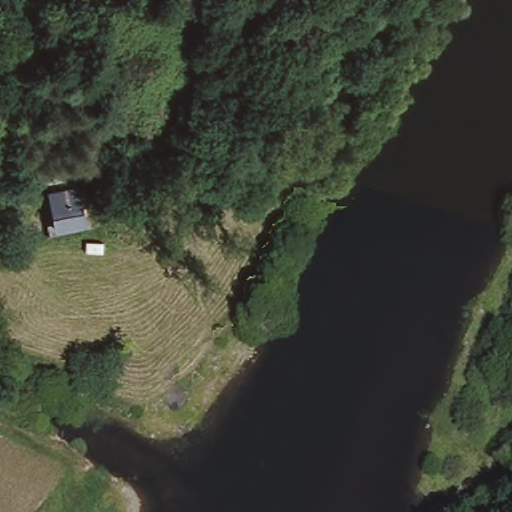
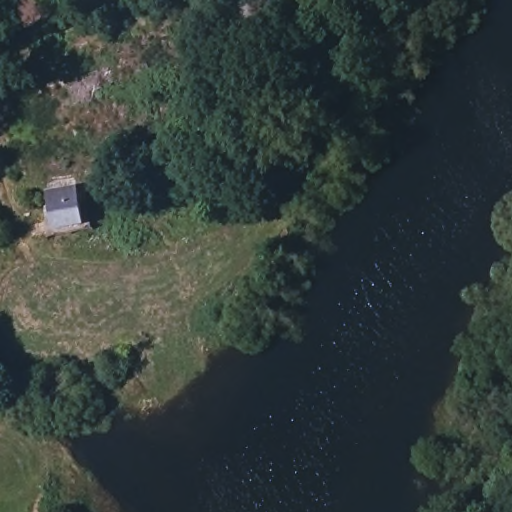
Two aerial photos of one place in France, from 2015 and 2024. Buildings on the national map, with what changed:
unchanged [(60,208),(59,204),(57,195),(85,187),(89,200),(95,222),(66,229),(62,216),(60,208)]

